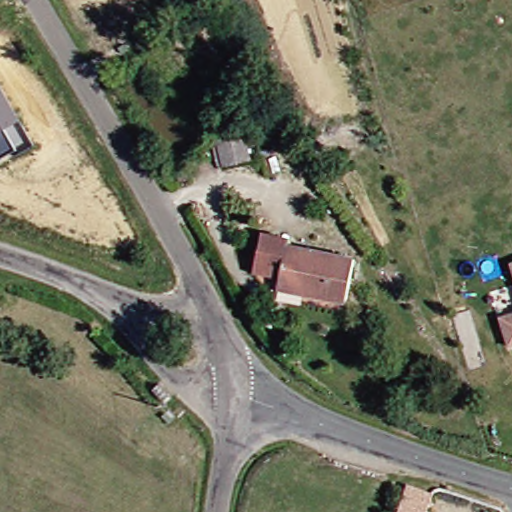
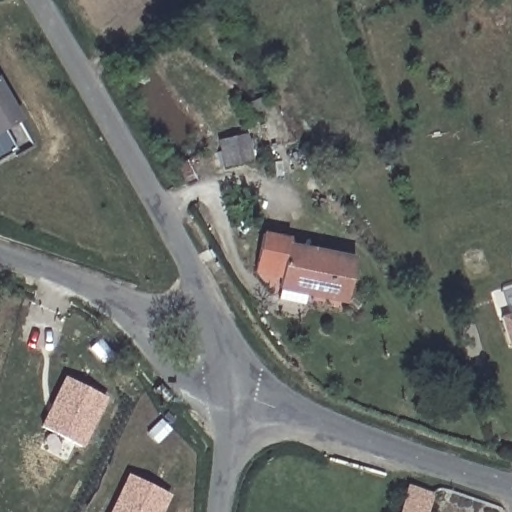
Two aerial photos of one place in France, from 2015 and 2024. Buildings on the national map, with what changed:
unchanged [(14,158),(0,166),(0,89),(21,125),(36,151),(16,162),(14,158)]
demolished [(236,144),(232,116),(260,112),(263,139),(236,144)]
unchanged [(216,170),(212,143),(240,139),(244,165),(216,170)]
unchanged [(272,274),(282,240),(346,256),(332,301),(298,291),(270,283),(272,274)]
unchanged [(510,264),(512,263),(512,272),(510,264)]
unchanged [(507,347),(498,318),(512,314),(512,346),(507,347)]
new [(40,427),(65,376),(108,398),(85,448),(40,427)]
new [(172,495),(164,512),(110,512),(127,474),(172,495)]
unchanged [(438,486),(429,512),(400,512),(411,477),(438,486)]

